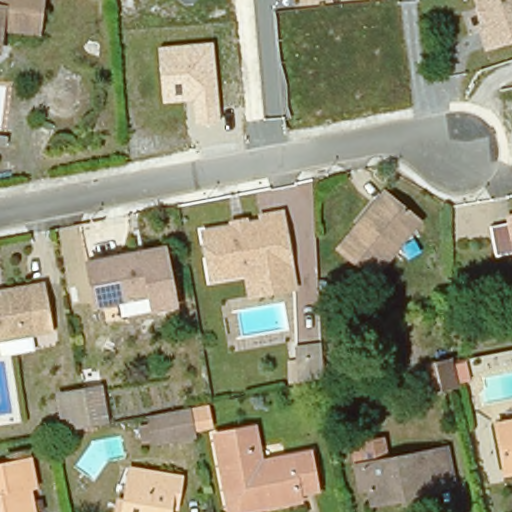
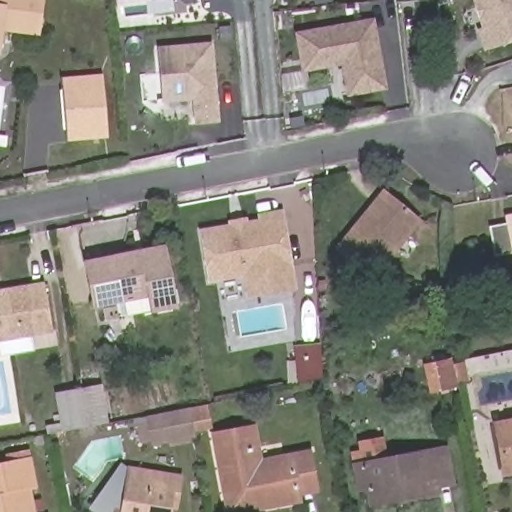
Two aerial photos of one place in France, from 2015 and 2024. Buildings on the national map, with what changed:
unchanged [(34,32),(0,27),(0,0),(38,0),(34,32)]
unchanged [(195,5),(185,6),(177,0),(199,0),(195,5)]
unchanged [(490,50),(474,0),(512,0),(512,42),(490,50)]
new [(373,18),(386,89),(347,97),(341,66),(302,73),(295,32),(373,18)]
unchanged [(220,124),(195,126),(193,103),(162,105),(158,47),(212,42),(220,124)]
new [(67,141),(64,77),(102,73),(108,138),(67,141)]
unchanged [(380,191),(416,220),(369,278),(333,249),(380,191)]
unchanged [(258,220),(257,215),(280,211),(288,262),(244,270),(209,277),(200,230),(258,220)]
unchanged [(506,215),(512,214),(512,242),(506,215)]
unchanged [(162,247),(173,304),(150,309),(147,293),(94,305),(85,262),(162,247)]
unchanged [(288,262),(292,284),(248,293),(244,270),(288,262)]
unchanged [(0,344),(0,295),(48,286),(56,334),(0,344)]
unchanged [(320,374),(295,375),(293,355),(293,342),(318,341),(318,354),(319,361),(320,374)]
unchanged [(438,370),(453,367),(457,389),(442,392),(438,370)]
unchanged [(55,393),(80,389),(97,386),(104,420),(86,423),(61,428),(55,393)]
unchanged [(152,444),(149,417),(184,411),(207,407),(209,407),(211,427),(187,432),(188,438),(152,444)]
unchanged [(502,466),(494,423),(512,419),(512,464),(502,466)]
unchanged [(222,499),(212,435),(249,430),(255,461),(303,454),(311,487),(294,492),(295,498),(253,506),(224,510),(222,499)]
unchanged [(371,497),(370,489),(358,492),(354,465),(365,463),(446,448),(453,482),(438,486),(439,491),(405,498),(372,504),(371,497)]
unchanged [(26,486),(33,512),(0,512),(0,463),(27,459),(32,485),(26,486)]
unchanged [(126,501),(133,468),(182,478),(180,494),(176,509),(170,508),(170,512),(114,512),(116,499),(126,501)]

